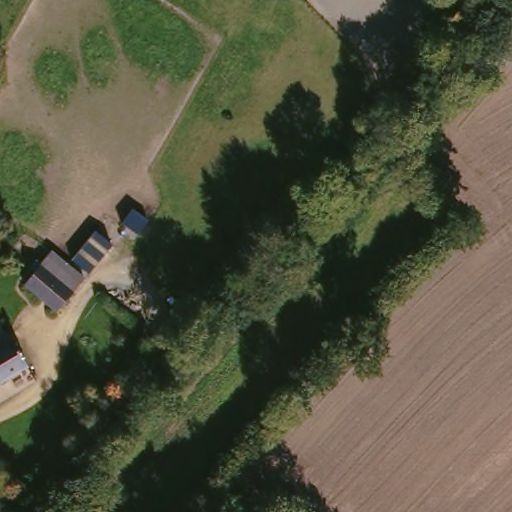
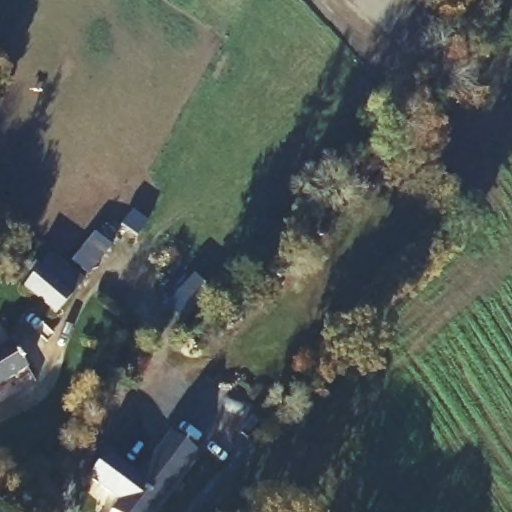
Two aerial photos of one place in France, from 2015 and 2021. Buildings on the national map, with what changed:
unchanged [(41,254),(47,259),(51,262),(65,274),(77,284),(60,304),(27,279),(24,275),(41,254)]
new [(186,279),(204,294),(179,325),(162,310),(186,279)]
unchanged [(0,332),(24,360),(0,380),(0,332)]
new [(110,510),(117,502),(87,478),(109,451),(138,473),(171,432),(200,454),(156,512),(113,512),(110,510)]

